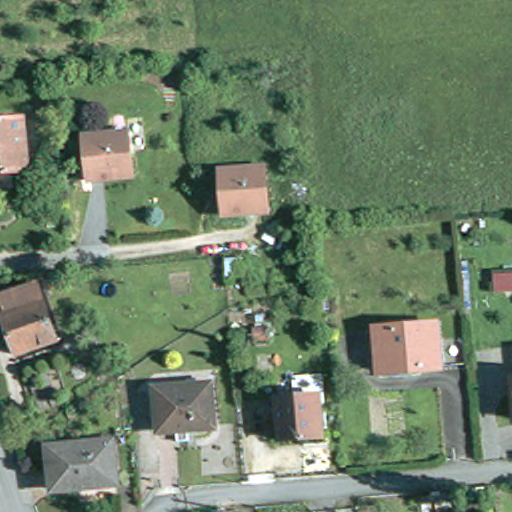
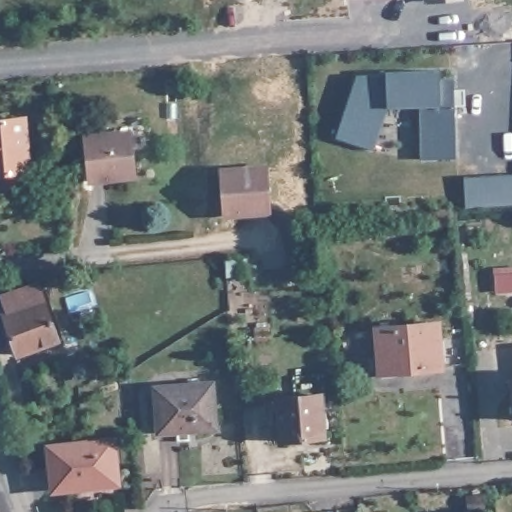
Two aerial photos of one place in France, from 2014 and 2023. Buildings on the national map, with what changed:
new [(463,1),(432,4),(432,0),(463,0),(463,1)]
new [(420,105),(387,106),(374,149),(335,136),(355,74),(385,73),(438,69),(439,79),(452,79),(455,157),(420,157),(420,105)]
unchanged [(16,113),(22,181),(0,184),(0,115),(16,113)]
unchanged [(134,174),(89,180),(85,135),(129,130),(134,174)]
unchanged [(266,215),(222,218),(220,173),(265,170),(266,215)]
new [(512,204),(465,207),(464,176),(512,173),(512,204)]
unchanged [(486,267),(512,264),(512,281),(488,284),(486,267)]
unchanged [(0,308),(0,284),(5,283),(11,305),(0,308)]
unchanged [(55,356),(14,362),(8,322),(13,322),(11,305),(48,299),(55,356)]
unchanged [(374,332),(433,326),(436,368),(377,373),(374,332)]
unchanged [(320,439),(275,441),(273,399),(297,398),(297,386),(314,385),(315,397),(317,396),(320,439)]
unchanged [(206,386),(208,427),(155,431),(153,390),(206,386)]
unchanged [(112,481),(51,487),(48,447),(108,440),(112,481)]

